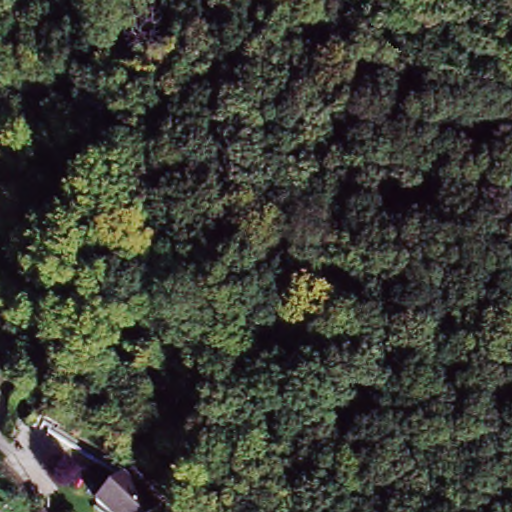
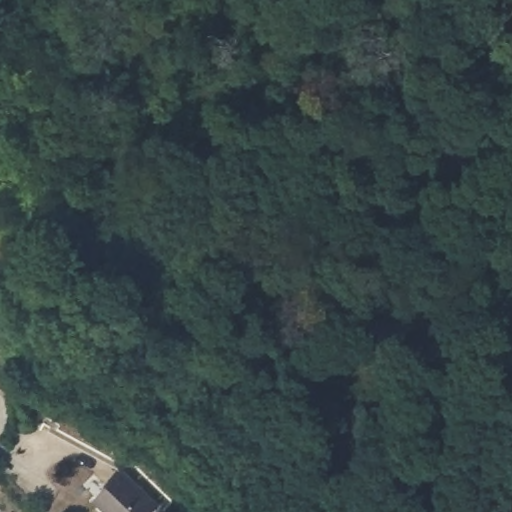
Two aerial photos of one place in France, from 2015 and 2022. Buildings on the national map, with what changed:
unchanged [(155,507),(151,512),(109,512),(95,500),(118,475),(155,507)]

